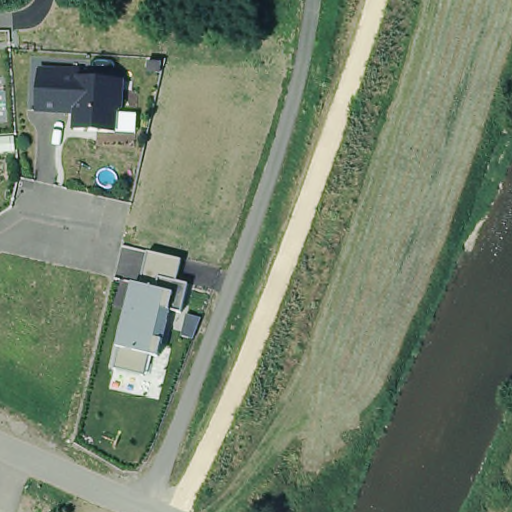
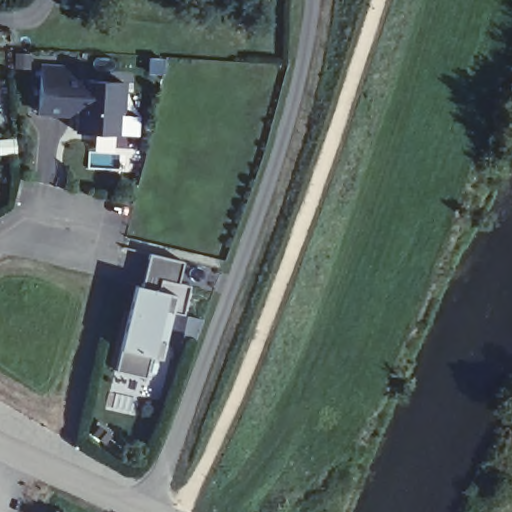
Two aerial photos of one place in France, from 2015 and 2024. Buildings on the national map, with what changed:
unchanged [(82,66),(81,77),(124,80),(122,109),(116,109),(115,132),(75,129),(75,114),(38,112),(40,64),(82,66)]
unchanged [(182,315),(171,313),(159,359),(151,358),(147,377),(116,370),(121,350),(118,349),(134,285),(140,285),(149,252),(182,260),(178,284),(190,286),(182,315)]

